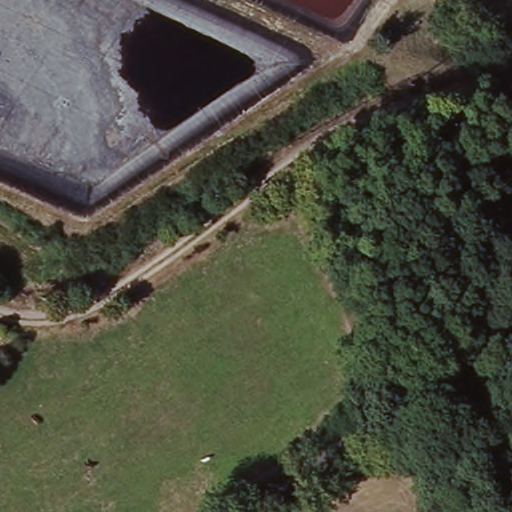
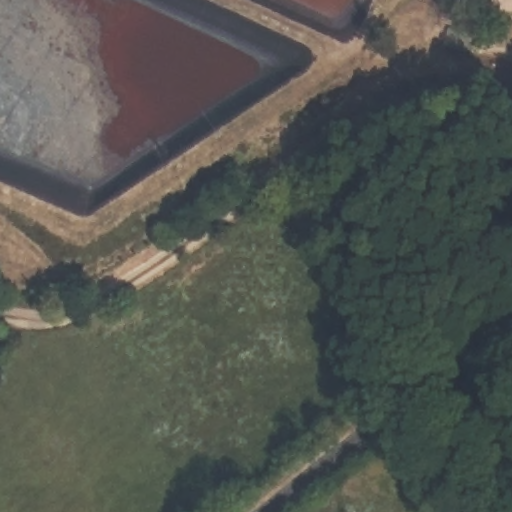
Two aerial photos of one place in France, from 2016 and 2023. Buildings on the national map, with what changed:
unchanged [(476,33),(499,37),(497,49),(473,46),(476,33)]

